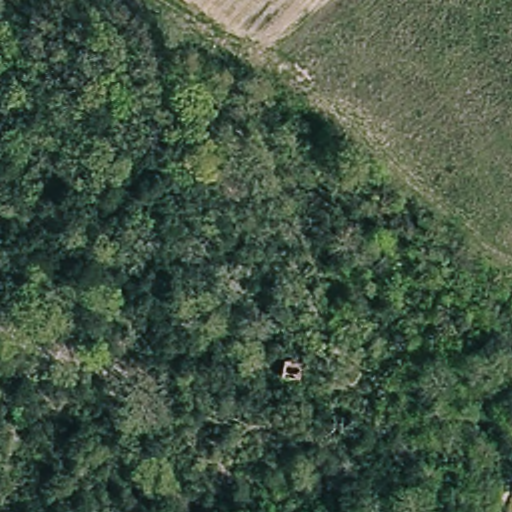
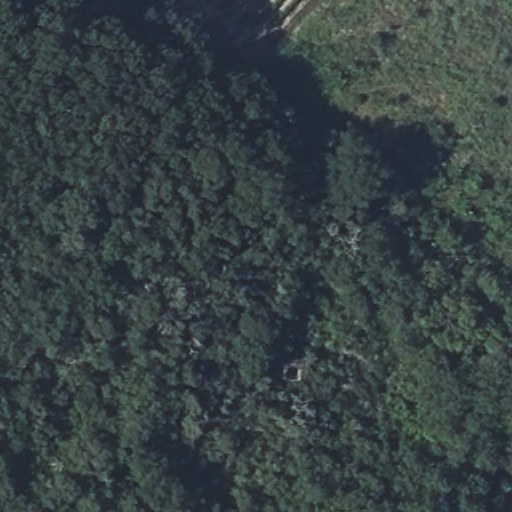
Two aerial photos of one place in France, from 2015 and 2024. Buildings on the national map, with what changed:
unchanged [(302,367),(299,383),(282,380),(286,363),(302,367)]

